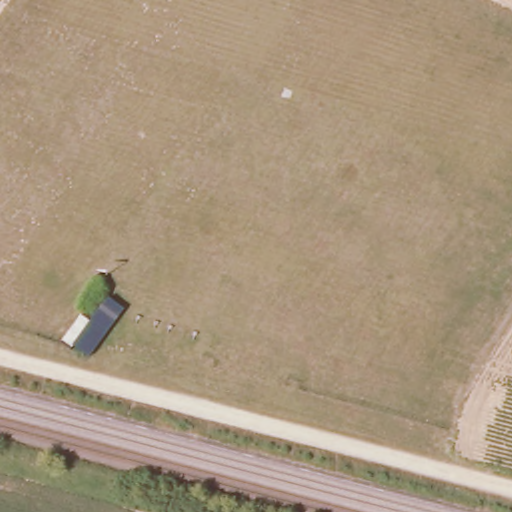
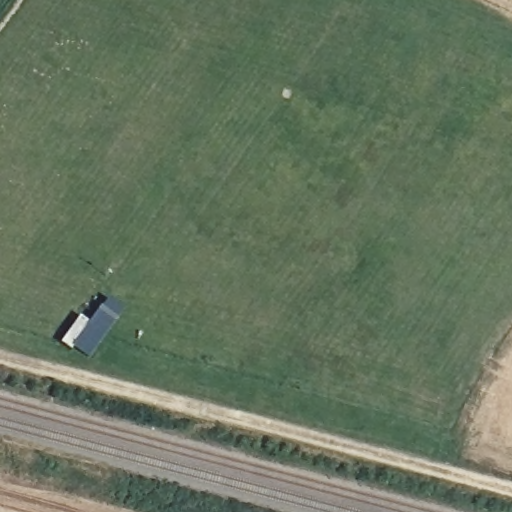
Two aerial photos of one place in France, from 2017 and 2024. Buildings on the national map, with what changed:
unchanged [(60,340),(80,312),(92,318),(73,347),(60,340)]

